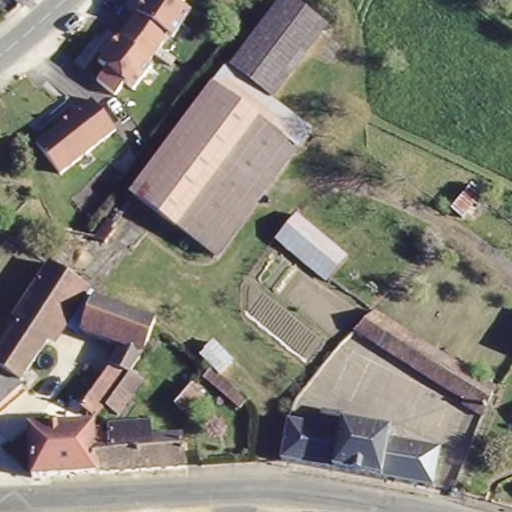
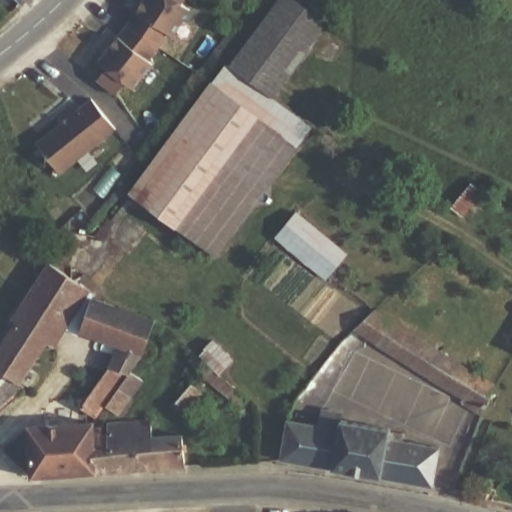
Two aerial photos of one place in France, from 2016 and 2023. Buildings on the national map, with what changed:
unchanged [(101,69),(93,64),(139,0),(181,0),(180,1),(188,7),(171,36),(166,32),(130,85),(123,82),(113,96),(92,82),(101,69)]
unchanged [(129,196),(280,0),(292,0),(324,27),(270,100),(305,130),(212,254),(129,196)]
unchanged [(89,97),(115,128),(57,174),(33,142),(89,97)]
unchanged [(327,277),(269,237),(298,214),(348,249),(327,277)]
unchanged [(123,307),(137,289),(162,302),(172,293),(196,320),(178,342),(152,321),(129,369),(139,375),(113,407),(99,400),(91,407),(73,399),(108,346),(65,323),(16,387),(0,403),(0,341),(52,259),(123,307)]
unchanged [(457,363),(484,384),(495,390),(480,413),(355,335),(370,307),(457,363)]
unchanged [(250,393),(243,400),(205,367),(210,361),(250,393)]
unchanged [(205,389),(188,409),(177,400),(195,379),(205,389)]
unchanged [(315,425),(321,398),(340,405),(341,427),(347,428),(338,465),(278,461),(283,417),(315,425)]
unchanged [(93,428),(96,470),(30,476),(22,423),(92,416),(93,428)]
unchanged [(153,416),(155,432),(158,464),(96,470),(93,428),(107,427),(107,420),(153,416)]
unchanged [(347,428),(385,435),(393,437),(383,472),(381,480),(335,474),(338,465),(347,428)]
unchanged [(190,461),(158,464),(155,432),(186,429),(190,461)]
unchanged [(393,437),(437,453),(430,482),(383,472),(393,437)]

